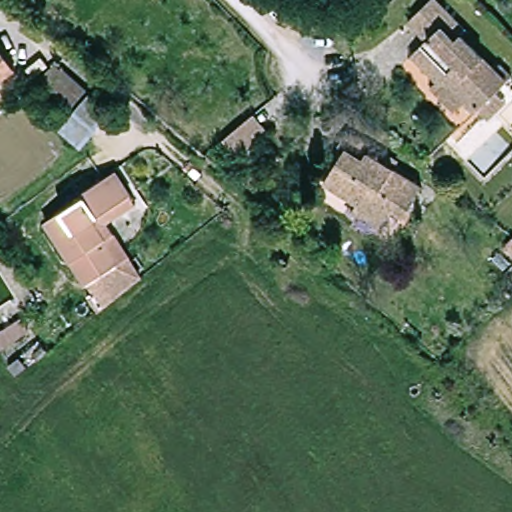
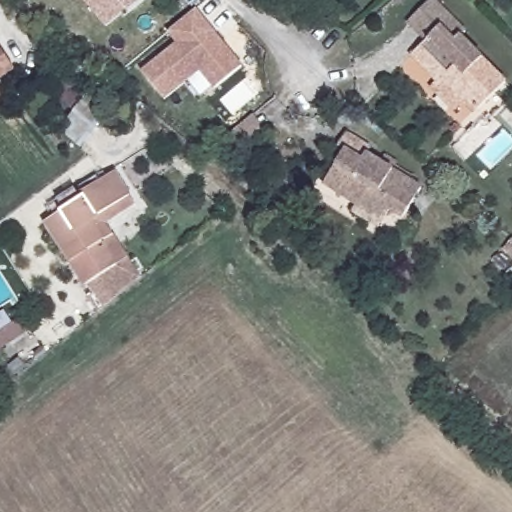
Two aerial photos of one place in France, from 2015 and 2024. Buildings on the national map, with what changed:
new [(118,5),(125,13),(108,28),(85,0),(124,0),(118,5)]
unchanged [(502,67),(512,77),(512,82),(497,97),(507,108),(491,124),(469,103),(459,114),(434,90),(441,83),(416,58),(431,43),(413,25),(436,1),(469,34),(464,39),(497,72),(502,67)]
new [(196,10),(243,67),(215,90),(199,72),(166,100),(143,73),(178,44),(168,33),(196,10)]
unchanged [(0,50),(6,46),(23,71),(0,87),(0,50)]
unchanged [(43,74),(61,60),(94,90),(78,107),(43,74)]
unchanged [(94,90),(114,108),(83,144),(62,125),(78,107),(94,90)]
unchanged [(271,133),(243,158),(228,141),(257,116),(271,133)]
unchanged [(425,190),(406,220),(395,214),(384,231),(356,214),(360,207),(328,187),(349,152),(343,148),(351,133),(377,149),(372,157),(425,190)]
unchanged [(89,198),(86,193),(119,173),(141,206),(110,225),(132,259),(88,286),(48,223),(89,198)]
unchanged [(0,349),(0,331),(19,319),(28,331),(0,349)]

